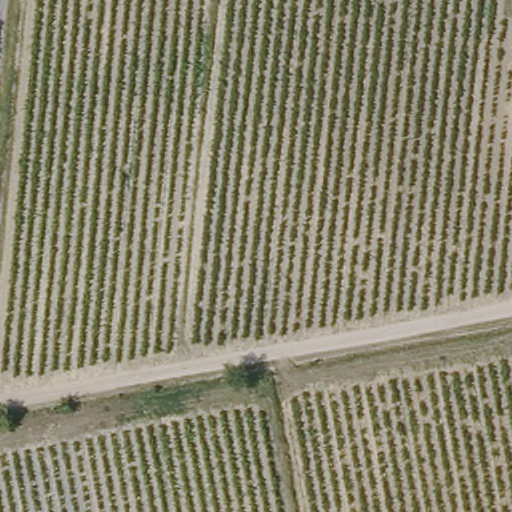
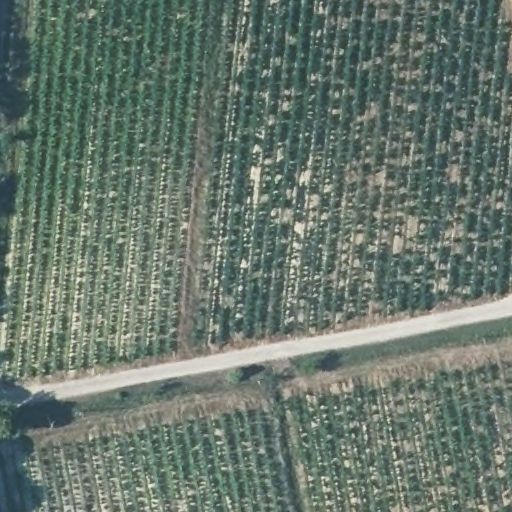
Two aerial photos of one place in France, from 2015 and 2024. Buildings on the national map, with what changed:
[]

